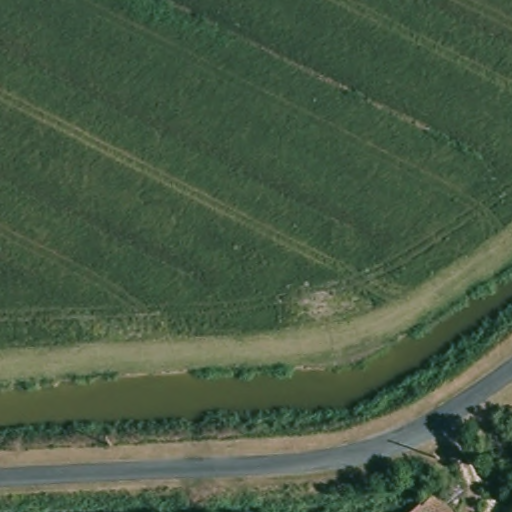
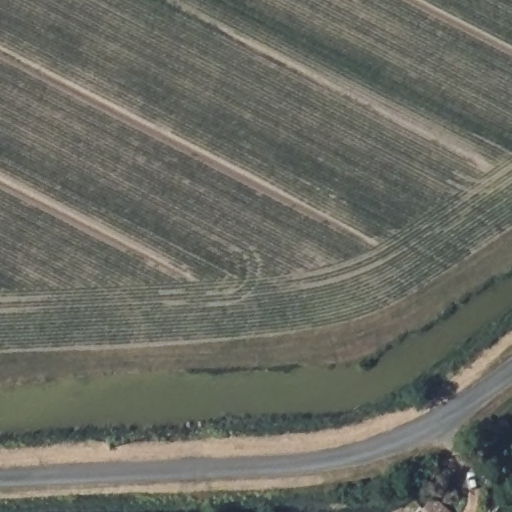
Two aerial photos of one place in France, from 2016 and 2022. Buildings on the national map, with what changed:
unchanged [(423,505),(438,490),(458,512),(416,512),(423,505)]

